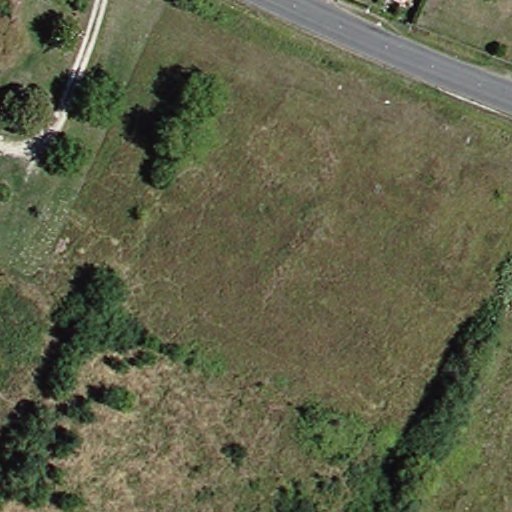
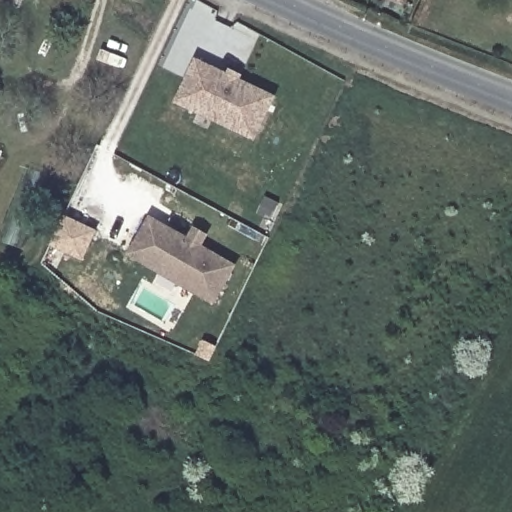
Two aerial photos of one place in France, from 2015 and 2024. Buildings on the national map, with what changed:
unchanged [(392,0),(408,0),(405,6),(392,0)]
new [(178,102),(197,61),(273,97),(255,138),(178,102)]
new [(99,230),(85,261),(49,245),(64,216),(99,230)]
new [(131,254),(151,219),(235,267),(213,302),(131,254)]

